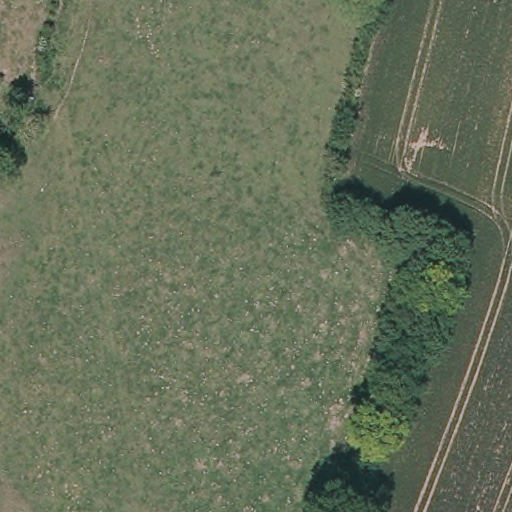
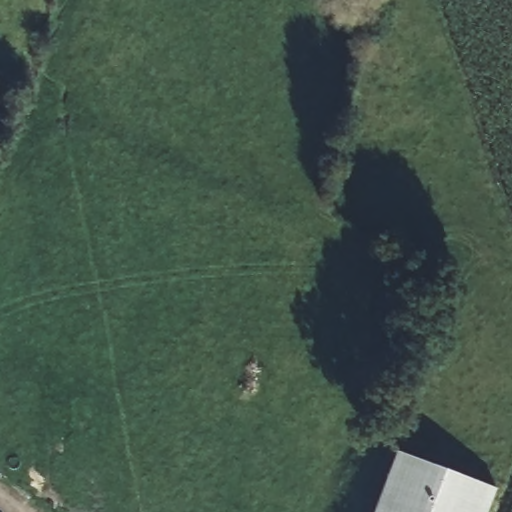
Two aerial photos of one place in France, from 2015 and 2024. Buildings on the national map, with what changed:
new [(399,452),(497,489),(488,512),(376,512),(399,452)]

